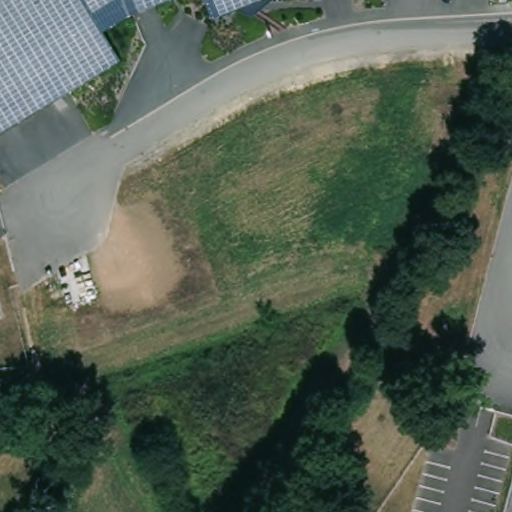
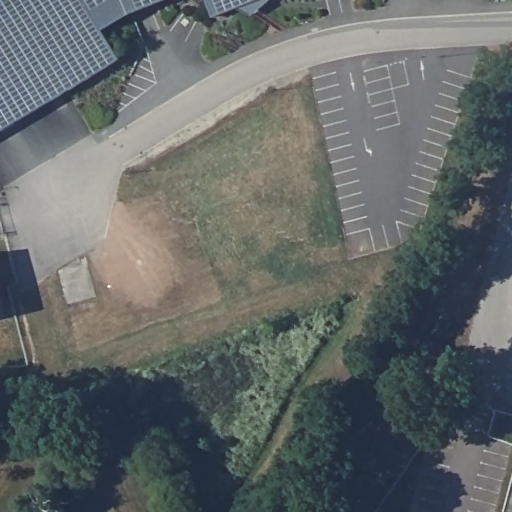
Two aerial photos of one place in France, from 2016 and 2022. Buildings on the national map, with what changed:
unchanged [(135,10),(105,27),(124,56),(0,130),(0,0),(162,0),(135,10)]
unchanged [(253,12),(238,4),(215,12),(210,0),(268,0),(253,12)]

